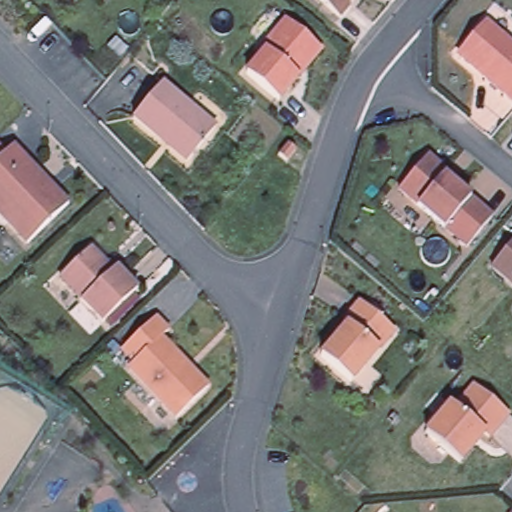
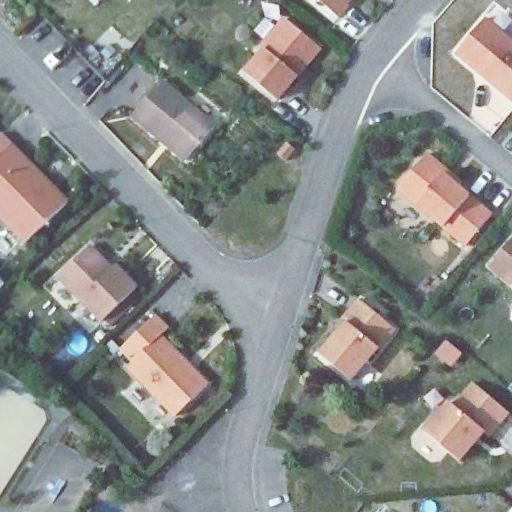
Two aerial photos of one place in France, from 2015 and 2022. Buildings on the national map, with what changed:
unchanged [(350,2),(353,5),(342,17),(322,0),(352,0),(350,2)]
unchanged [(463,46),(488,16),(512,37),(512,95),(484,72),(476,67),(462,55),(463,46)]
unchanged [(298,75),(294,72),(293,75),(294,77),(277,98),(246,71),(265,47),(261,45),(285,17),(315,42),(321,47),(298,75)]
unchanged [(158,77),(212,125),(183,158),(168,145),(171,142),(161,133),(157,137),(129,112),(158,77)]
unchanged [(284,147),(274,159),(268,152),(278,142),(284,147)]
unchanged [(3,153),(10,146),(31,167),(51,189),(65,204),(23,244),(0,217),(0,150),(3,153)]
unchanged [(447,167),(463,180),(459,185),(493,212),(468,242),(400,185),(428,151),(447,167)]
unchanged [(512,277),(494,261),(512,239),(512,277)]
unchanged [(113,267),(117,263),(138,285),(103,320),(60,275),(91,245),(113,267)]
unchanged [(346,317),(361,297),(397,326),(353,378),(322,352),(349,320),(346,317)]
unchanged [(136,355),(124,342),(159,308),(172,322),(165,329),(211,378),(179,410),(132,360),(136,355)]
unchanged [(455,402),(475,379),(509,410),(489,433),(484,428),(459,458),(426,428),(452,399),(455,402)]

